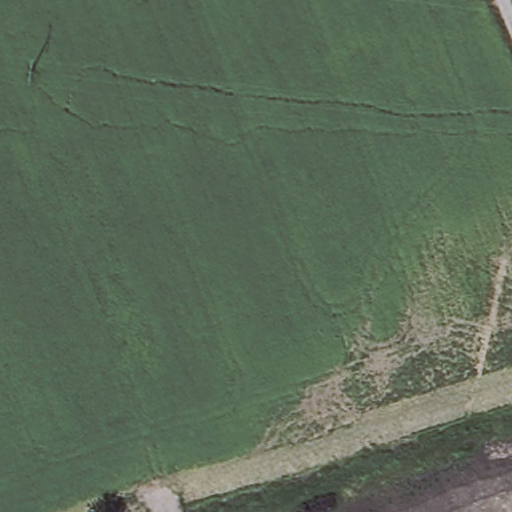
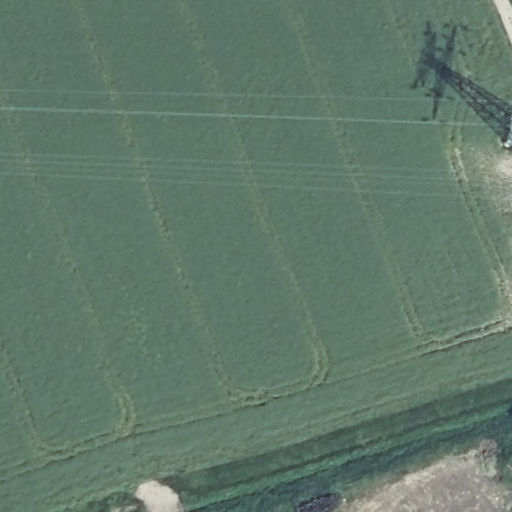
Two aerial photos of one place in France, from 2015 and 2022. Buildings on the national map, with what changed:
[]

